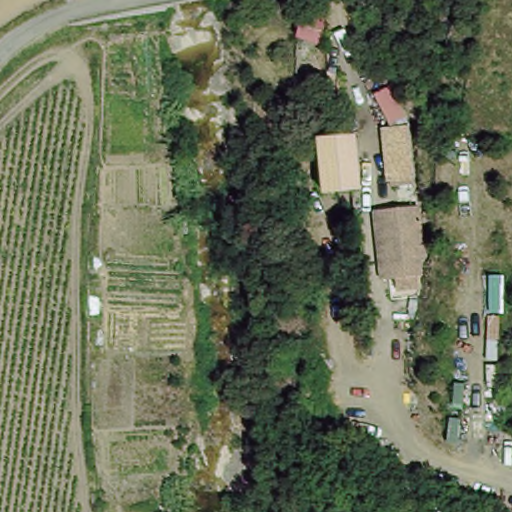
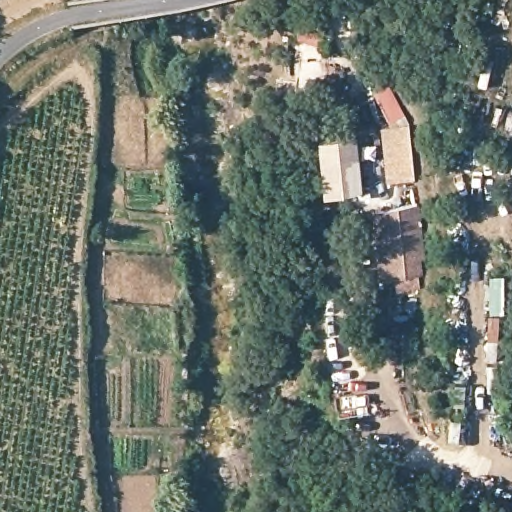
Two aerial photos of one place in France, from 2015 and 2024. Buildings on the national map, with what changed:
unchanged [(317,45),(292,39),(298,15),(322,22),(317,45)]
unchanged [(405,132),(410,181),(387,184),(382,134),(405,132)]
unchanged [(346,138),(352,193),(333,196),(331,185),(323,186),(317,141),(346,138)]
unchanged [(419,210),(421,293),(398,296),(396,283),(380,281),(375,216),(419,210)]
unchanged [(413,482),(418,495),(402,500),(401,485),(413,482)]

